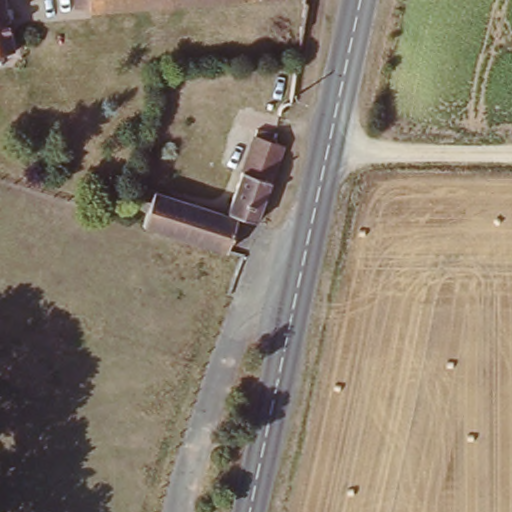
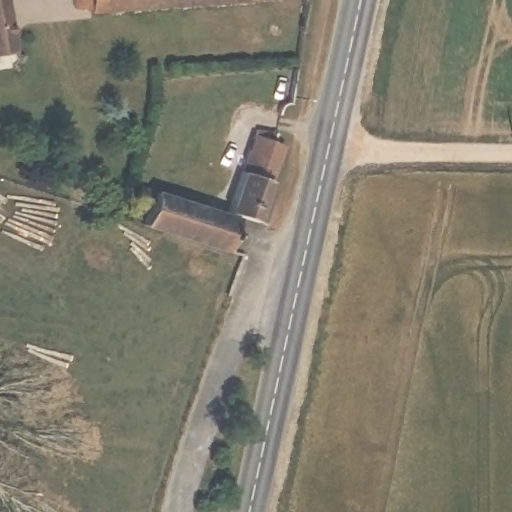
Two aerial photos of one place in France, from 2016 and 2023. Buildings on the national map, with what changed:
unchanged [(0,0),(6,0),(15,59),(0,60),(0,0)]
unchanged [(88,14),(87,8),(74,10),(73,0),(159,0),(160,7),(88,14)]
unchanged [(160,7),(159,0),(239,0),(160,7)]
unchanged [(229,213),(254,137),(282,145),(256,222),(238,217),(229,213)]
unchanged [(139,189),(236,223),(227,248),(225,254),(145,228),(150,212),(132,206),(139,189)]

